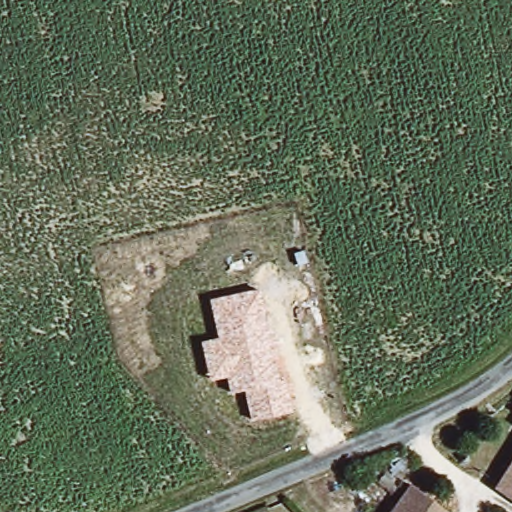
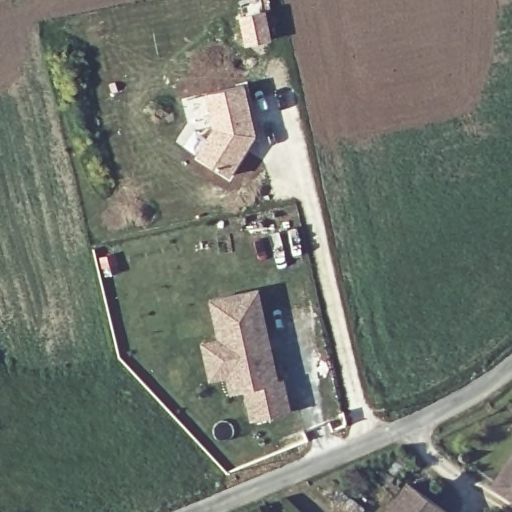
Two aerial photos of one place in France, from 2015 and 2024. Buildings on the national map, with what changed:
new [(265,8),(272,39),(244,45),(238,14),(265,8)]
new [(211,125),(203,92),(245,82),(256,135),(228,178),(195,156),(211,125)]
unchanged [(280,382),(287,380),(293,409),(252,419),(245,389),(230,393),(226,375),(210,379),(202,341),(217,338),(210,300),(261,288),(280,382)]
unchanged [(512,457),(512,493),(497,482),(512,457)]
unchanged [(450,512),(392,512),(412,483),(450,512)]

